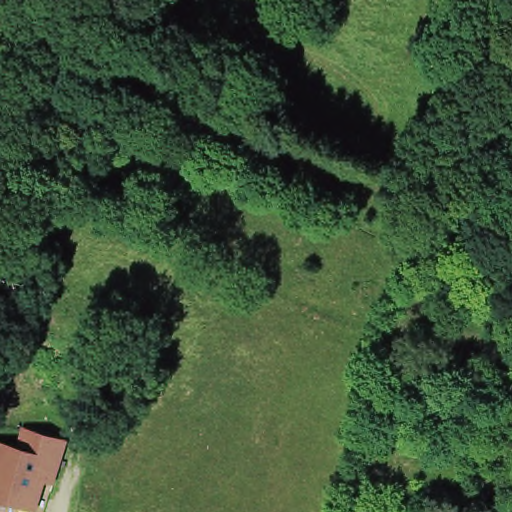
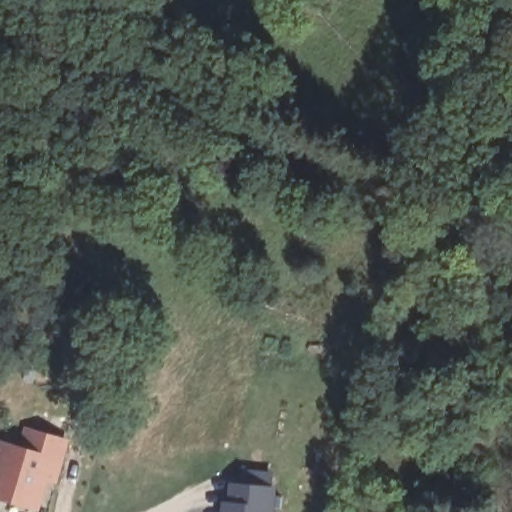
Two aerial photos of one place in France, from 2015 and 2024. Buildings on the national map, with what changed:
unchanged [(50,484),(44,512),(37,512),(0,500),(0,439),(21,446),(25,426),(72,440),(59,485),(50,484)]
new [(225,501),(225,481),(238,483),(239,470),(273,471),(272,486),(276,486),(274,498),(281,497),(280,509),(274,509),(273,512),(217,512),(219,500),(225,501)]

